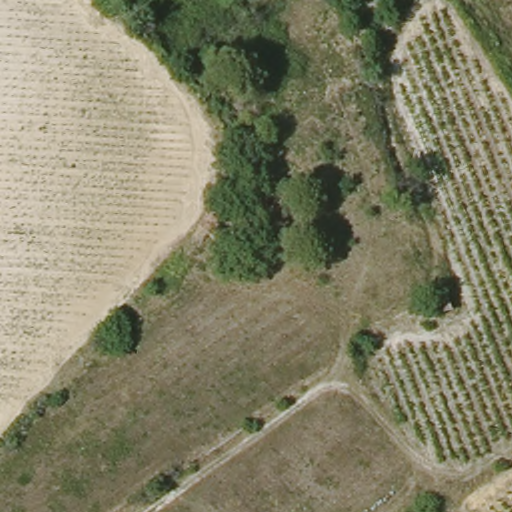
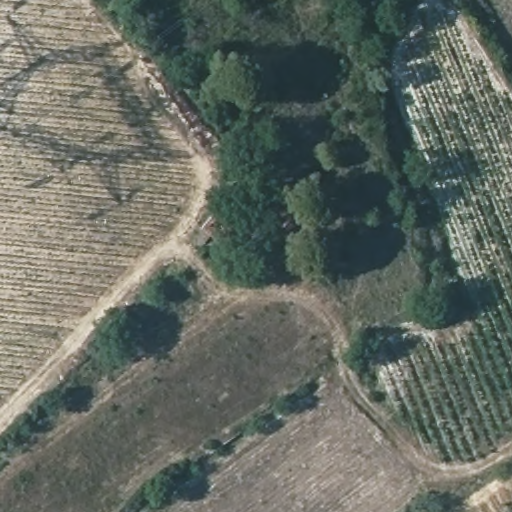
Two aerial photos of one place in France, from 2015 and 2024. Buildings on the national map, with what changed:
unchanged [(207,236),(222,217),(237,229),(222,248),(207,236)]

